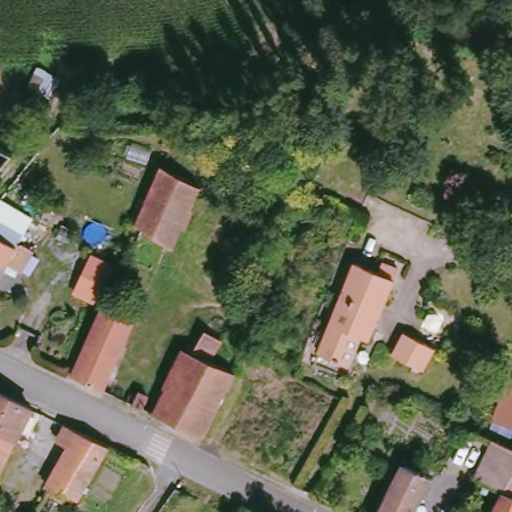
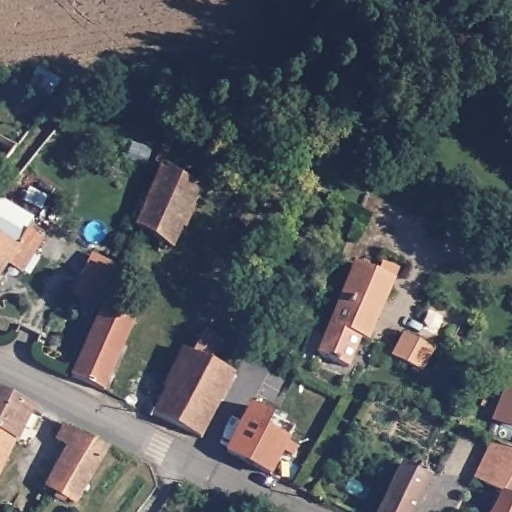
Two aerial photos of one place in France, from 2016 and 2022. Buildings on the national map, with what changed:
unchanged [(134,224),(163,162),(163,161),(200,183),(172,246),(134,224)]
unchanged [(0,271),(0,238),(15,251),(0,271)]
unchanged [(355,336),(345,366),(313,355),(348,262),(371,270),(375,260),(391,266),(363,339),(355,336)]
unchanged [(73,371),(104,305),(136,320),(106,387),(73,371)]
unchanged [(197,433),(150,410),(183,344),(191,347),(203,325),(218,334),(207,356),(229,367),(197,433)]
unchanged [(421,370),(395,352),(410,331),(437,350),(423,371),(421,370)]
new [(492,420),(508,378),(512,380),(512,428),(492,420)]
unchanged [(133,402),(137,395),(144,397),(147,392),(155,396),(148,410),(133,402)]
unchanged [(0,472),(0,394),(30,408),(0,472)]
new [(271,475),(225,452),(249,405),(273,416),(268,427),(290,440),(271,475)]
unchanged [(76,444),(61,437),(67,425),(82,432),(112,446),(82,503),(52,490),(76,444)]
unchanged [(476,480),(493,445),(512,454),(512,472),(502,492),(476,480)]
unchanged [(429,478),(414,512),(380,512),(402,467),(429,478)]
unchanged [(500,495),(502,492),(512,472),(512,501),(500,495)]
unchanged [(512,501),(512,512),(493,512),(500,495),(512,501)]

